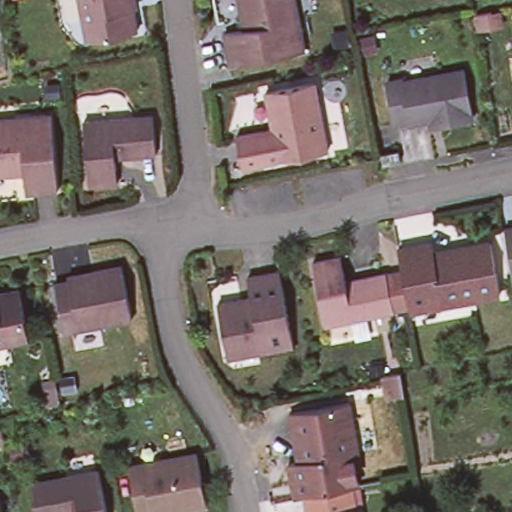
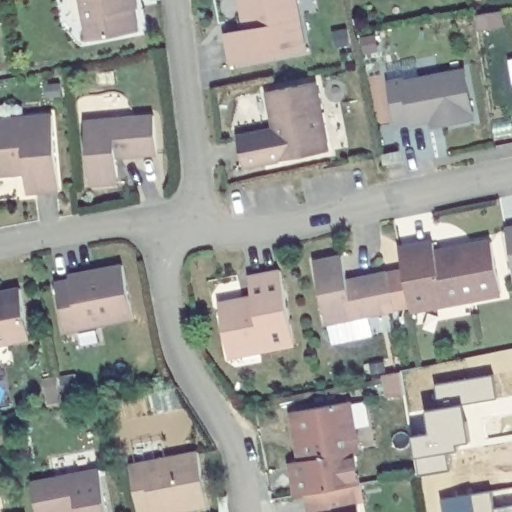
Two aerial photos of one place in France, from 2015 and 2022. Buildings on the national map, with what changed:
unchanged [(84,0),(140,0),(140,3),(137,4),(142,27),(92,37),(84,0)]
unchanged [(223,29),(243,25),(239,0),(296,0),(298,11),(305,47),(230,61),(223,29)]
unchanged [(430,117),(412,122),(409,118),(395,122),(387,79),(400,77),(402,80),(463,67),(472,116),(443,122),(432,125),(430,117)]
unchanged [(318,83),(332,151),(247,167),(240,136),(277,130),(270,92),(318,83)]
unchanged [(152,111),(155,150),(115,154),(117,179),(89,182),(83,117),(152,111)]
unchanged [(62,187),(32,190),(29,170),(0,173),(0,117),(18,115),(55,112),(62,187)]
unchanged [(399,150),(401,161),(381,165),(380,159),(378,154),(399,150)]
unchanged [(512,227),(512,263),(505,229),(512,227)]
unchanged [(312,257),(342,251),(347,276),(387,267),(402,265),(398,247),(432,241),(434,250),(490,240),(500,290),(410,307),(408,302),(395,305),(325,319),(312,257)]
unchanged [(132,319),(65,332),(55,285),(68,282),(67,276),(92,271),(122,265),(132,319)]
unchanged [(227,343),(217,300),(252,292),(248,272),(279,266),(294,340),(258,347),(229,353),(227,343)]
unchanged [(29,335),(0,340),(0,289),(20,285),(29,335)]
unchanged [(400,370),(404,392),(387,397),(382,372),(400,370)]
new [(492,377),(495,399),(461,407),(467,445),(454,447),(455,452),(445,454),(449,472),(417,477),(410,439),(427,436),(423,412),(460,407),(457,397),(437,400),(433,386),(492,377)]
unchanged [(290,412),(349,401),(358,452),(353,452),(359,485),(352,486),(305,495),(295,496),(290,463),(300,461),(296,442),(290,412)]
unchanged [(129,466),(197,452),(207,506),(180,512),(152,512),(138,512),(129,466)]
unchanged [(99,470),(108,512),(37,512),(31,484),(99,470)]
unchanged [(305,495),(352,486),(357,512),(308,512),(305,495)]
new [(441,500),(490,492),(493,510),(512,507),(512,512),(443,512),(441,500)]

